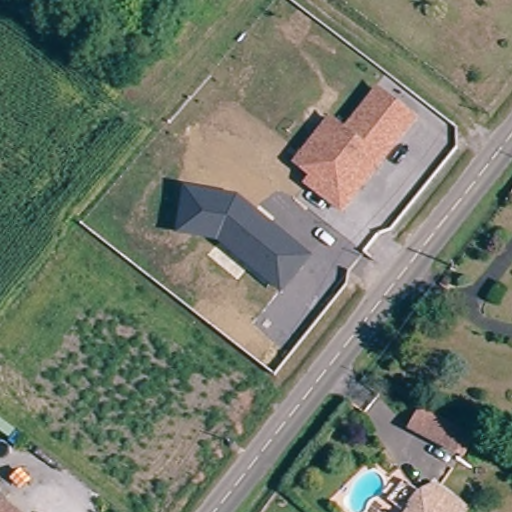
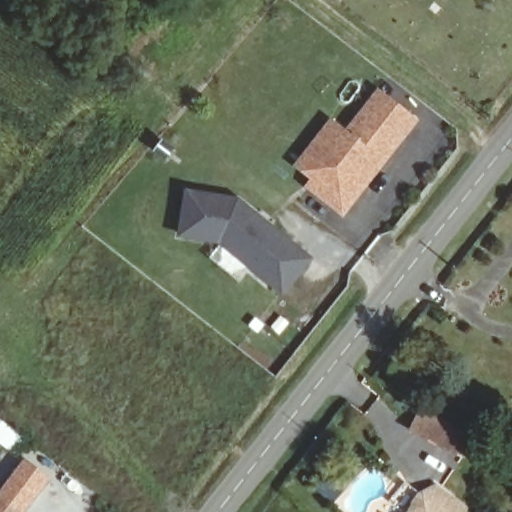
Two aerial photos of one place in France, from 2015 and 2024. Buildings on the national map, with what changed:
unchanged [(299,164),(317,141),(333,122),(348,134),(351,135),(384,94),(416,119),(383,162),(363,187),(343,212),(318,192),(309,185),(315,178),(299,164)]
unchanged [(185,188),(240,197),(314,257),(283,297),(217,244),(178,239),(185,188)]
unchanged [(470,436),(460,456),(415,435),(424,414),(470,436)]
new [(52,480),(28,512),(0,512),(0,493),(26,460),(52,480)]
unchanged [(409,506),(414,500),(418,502),(425,492),(434,482),(453,497),(460,502),(471,511),(470,512),(409,512),(412,508),(409,506)]

